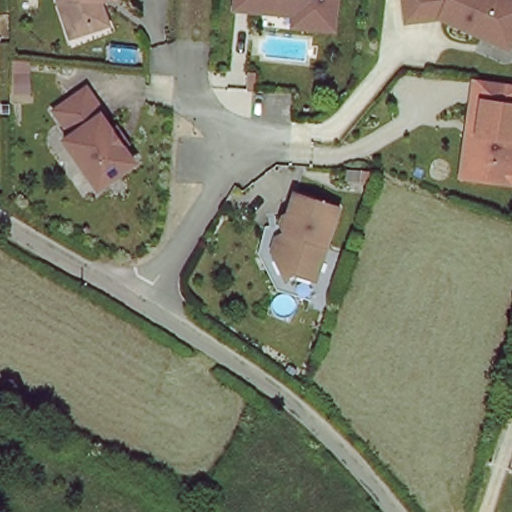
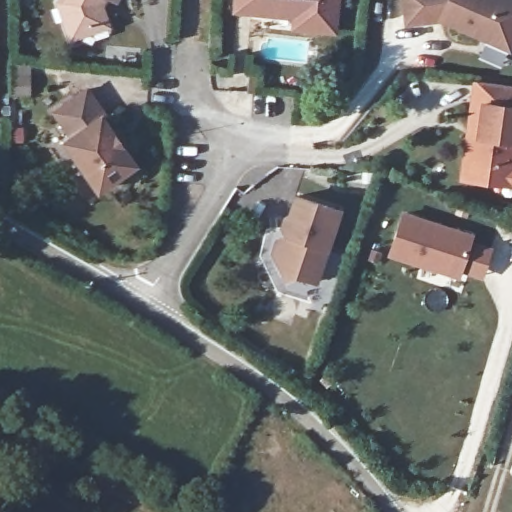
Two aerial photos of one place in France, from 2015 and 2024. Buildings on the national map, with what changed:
unchanged [(108,14),(96,21),(95,27),(75,37),(69,22),(75,4),(65,0),(102,0),(101,2),(108,14)]
unchanged [(295,29),(297,11),(262,6),(261,17),(232,14),(233,0),(339,0),(336,34),(295,29)]
unchanged [(439,17),(405,21),(403,0),(511,0),(512,0),(512,41),(511,43),(509,49),(482,37),(439,17)]
unchanged [(459,180),(464,141),(472,141),(477,100),(470,100),(472,82),(512,87),(512,171),(512,187),(510,187),(459,180)]
unchanged [(98,190),(61,146),(68,140),(48,117),(76,92),(95,115),(93,117),(131,161),(98,190)]
unchanged [(293,268),(291,276),(283,273),(271,246),(280,242),(284,228),(279,219),(282,211),(287,207),(294,187),(337,204),(312,276),(293,268)]
new [(485,280),(460,272),(457,279),(385,256),(400,210),(474,232),(471,242),(495,250),(485,280)]

